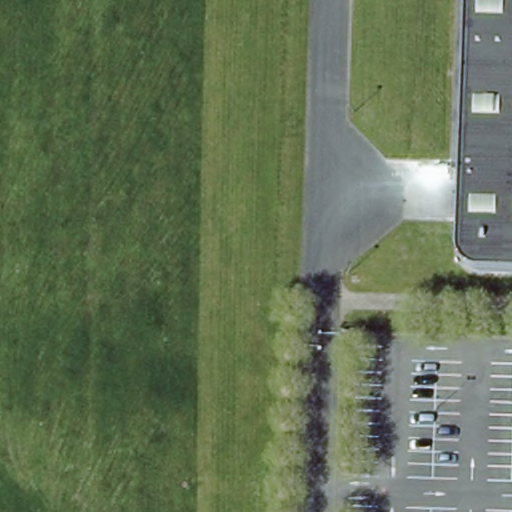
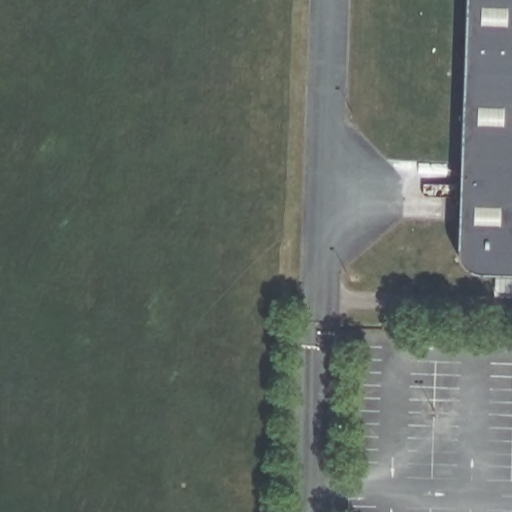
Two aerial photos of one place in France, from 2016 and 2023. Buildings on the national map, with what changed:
unchanged [(474,271),(469,269),(464,266),(460,262),(459,258),(457,253),(457,236),(457,194),(463,43),(464,0),(512,0),(512,273),(482,271),(474,271)]

